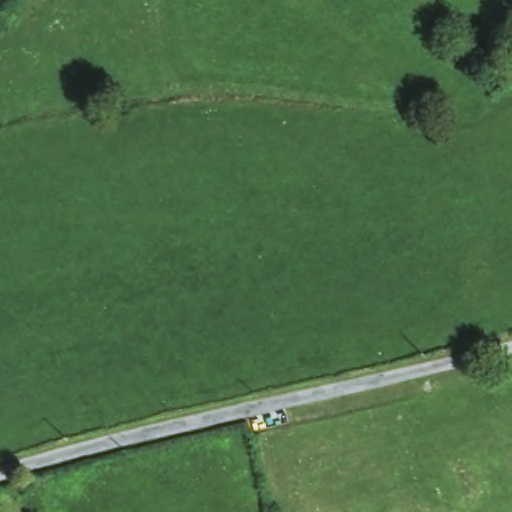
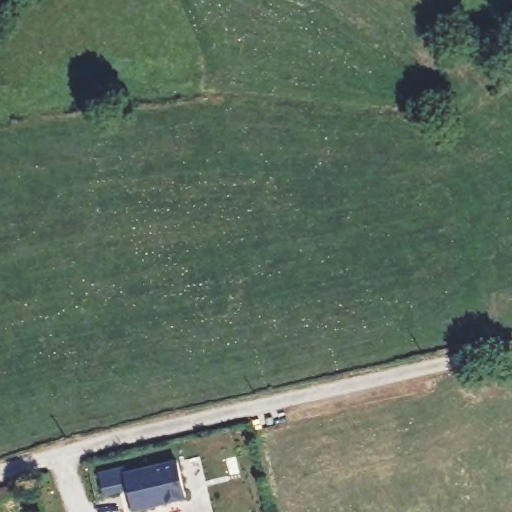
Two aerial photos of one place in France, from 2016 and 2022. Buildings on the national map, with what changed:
new [(122,467),(125,472),(179,460),(187,498),(134,511),(128,487),(103,495),(101,472),(122,467)]

